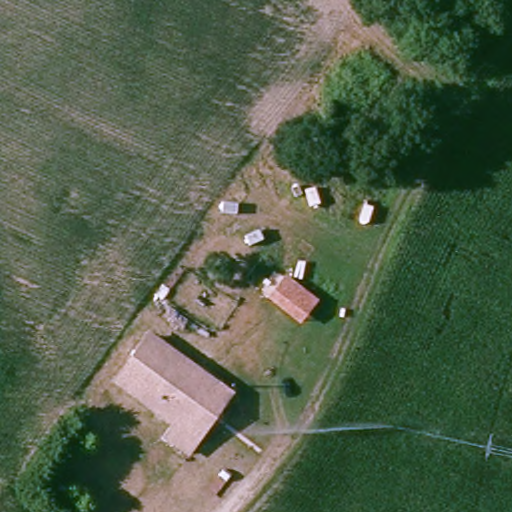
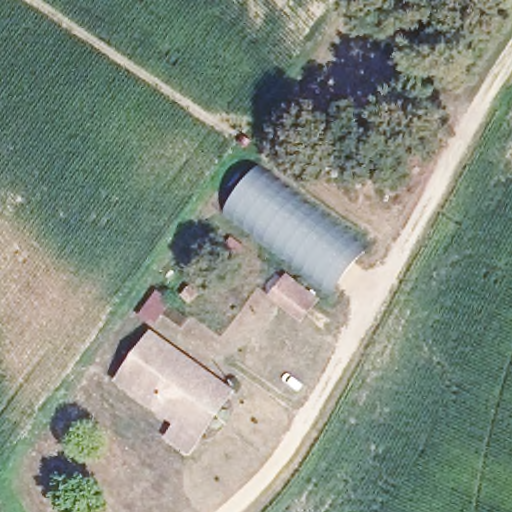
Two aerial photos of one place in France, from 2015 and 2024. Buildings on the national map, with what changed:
new [(222,214),(262,165),(374,243),(332,297),(222,214)]
new [(267,298),(286,274),(320,300),(302,324),(267,298)]
unchanged [(235,386),(207,430),(189,451),(175,437),(187,419),(121,379),(148,333),(235,386)]

